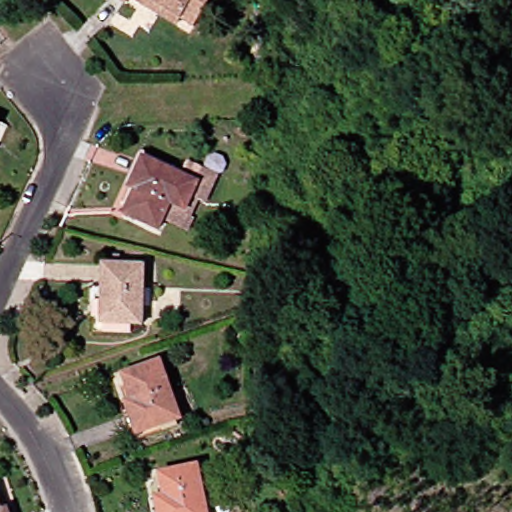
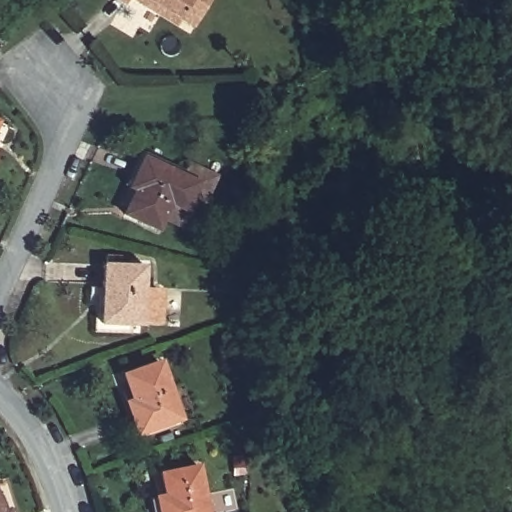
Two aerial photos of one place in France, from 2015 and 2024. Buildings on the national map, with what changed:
unchanged [(129,5),(119,0),(132,0),(129,5)]
unchanged [(148,9),(135,0),(219,0),(202,30),(183,20),(180,27),(148,9)]
unchanged [(0,150),(0,118),(11,122),(0,150)]
unchanged [(199,219),(194,217),(190,226),(175,220),(169,232),(136,218),(139,210),(133,206),(152,160),(193,177),(197,165),(224,176),(214,200),(208,197),(203,210),(199,219)]
unchanged [(148,325),(136,323),(135,332),(101,331),(101,287),(108,287),(109,263),(151,266),(148,325)]
unchanged [(187,415),(148,431),(130,383),(136,381),(133,375),(168,361),(187,415)]
unchanged [(199,469),(209,512),(168,512),(160,477),(199,469)]
unchanged [(9,490),(16,512),(0,512),(0,487),(2,493),(9,490)]

